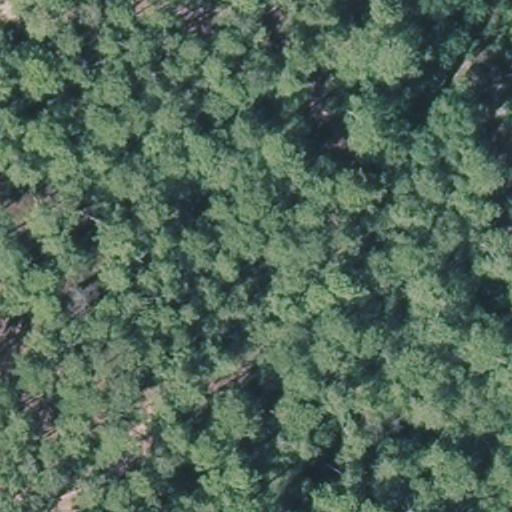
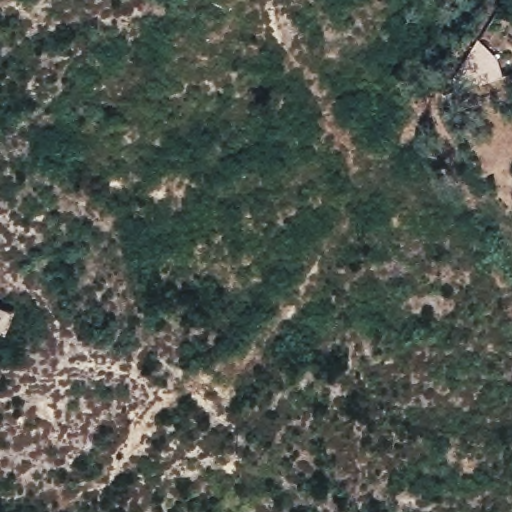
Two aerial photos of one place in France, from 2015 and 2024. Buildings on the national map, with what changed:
unchanged [(474,99),(450,82),(477,42),(500,59),(474,99)]
unchanged [(0,329),(0,308),(15,312),(9,332),(0,329)]

